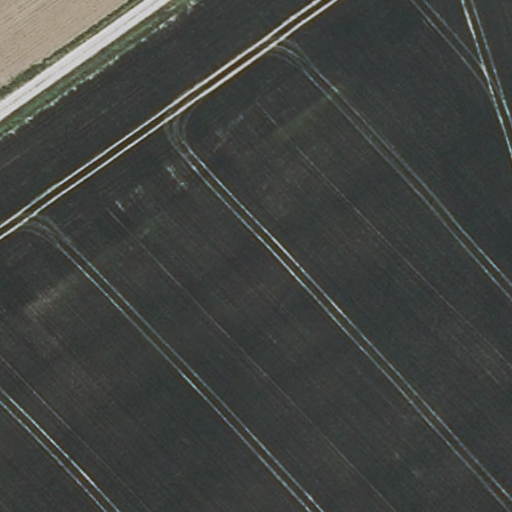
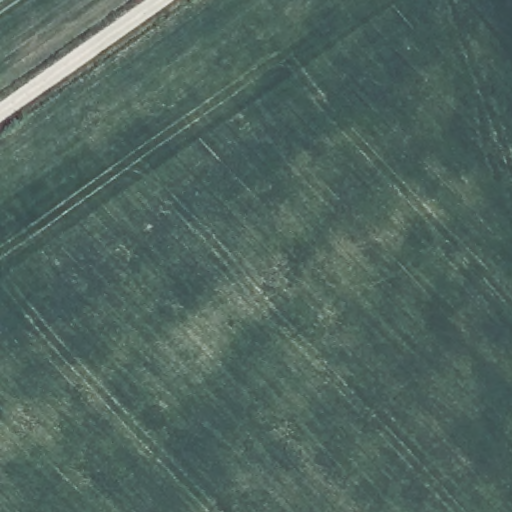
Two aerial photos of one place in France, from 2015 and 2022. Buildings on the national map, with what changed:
[]

